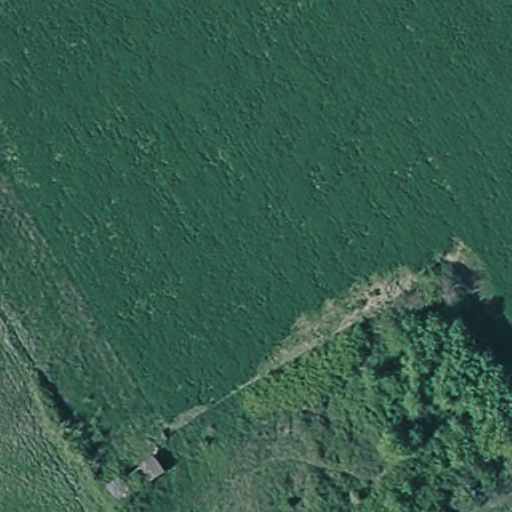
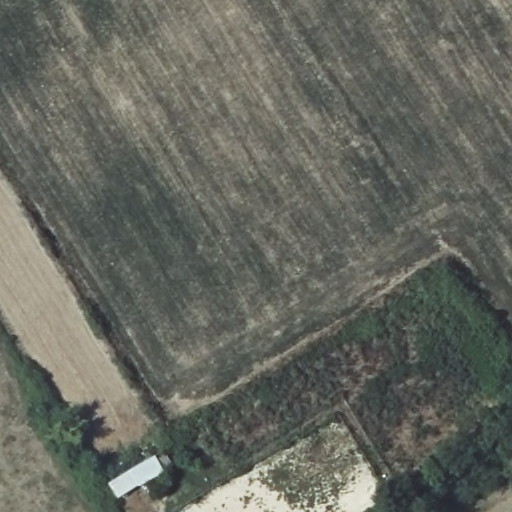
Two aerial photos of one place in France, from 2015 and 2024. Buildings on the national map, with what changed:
unchanged [(159,456),(169,473),(121,505),(111,488),(159,456)]

